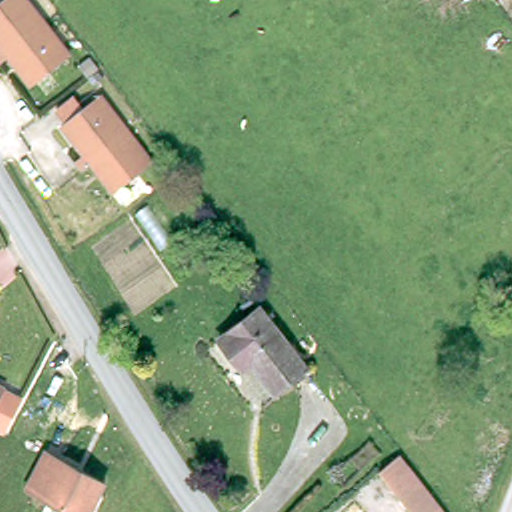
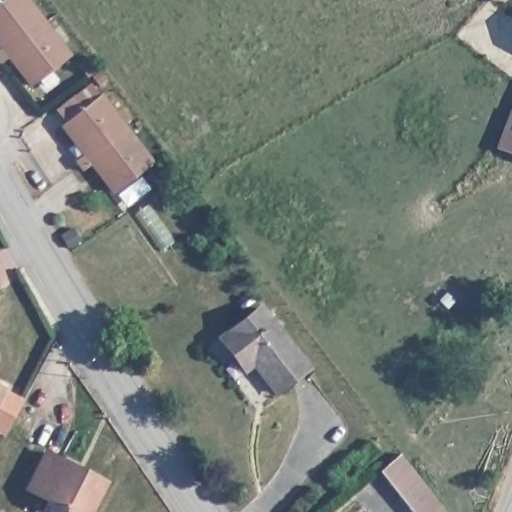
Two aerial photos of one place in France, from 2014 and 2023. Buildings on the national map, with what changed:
unchanged [(34,81),(12,52),(1,60),(0,57),(0,47),(5,43),(0,37),(0,2),(2,0),(30,0),(71,53),(34,81)]
unchanged [(158,158),(121,186),(105,166),(91,172),(82,156),(92,150),(70,120),(106,91),(158,158)]
new [(510,111),(512,111),(512,154),(496,148),(510,111)]
unchanged [(222,331),(264,299),(312,362),(279,387),(257,358),(248,365),(240,354),(222,331)]
unchanged [(12,385),(0,416),(0,380),(12,385)]
unchanged [(383,466),(405,448),(423,474),(452,512),(417,512),(402,492),(383,466)]
unchanged [(51,450),(110,477),(96,512),(85,512),(33,489),(51,450)]

